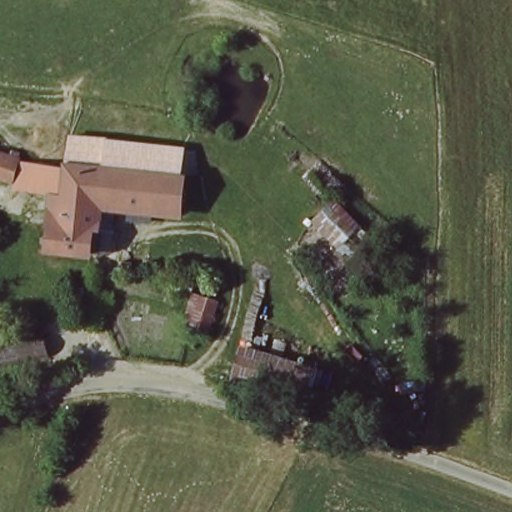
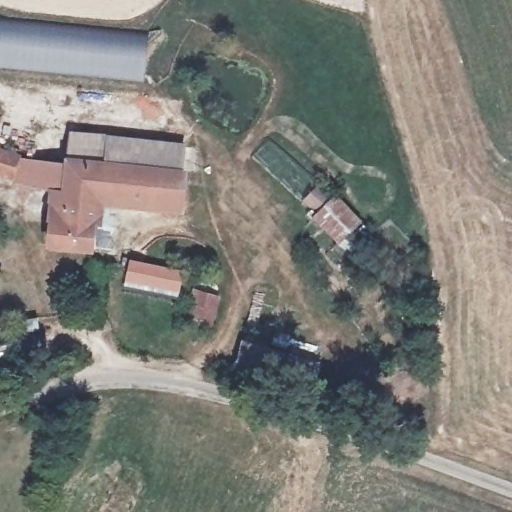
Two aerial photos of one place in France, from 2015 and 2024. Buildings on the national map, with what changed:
new [(0,28),(0,24),(147,36),(144,78),(0,64),(0,28)]
unchanged [(47,132),(136,130),(137,169),(47,175),(47,132)]
unchanged [(187,130),(189,212),(137,211),(137,169),(136,130),(187,130)]
new [(0,177),(0,149),(21,155),(21,159),(47,163),(47,175),(47,191),(13,186),(14,181),(0,177)]
unchanged [(137,211),(100,211),(98,253),(47,253),(47,175),(137,169),(137,211)]
unchanged [(340,245),(312,219),(340,196),(362,221),(340,245)]
unchanged [(214,335),(185,326),(188,307),(175,302),(178,278),(220,288),(214,335)]

